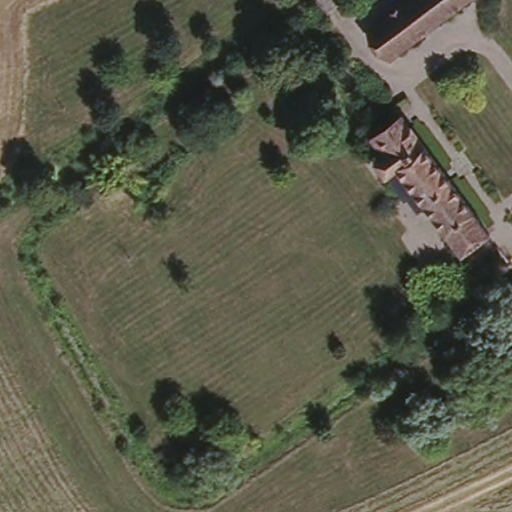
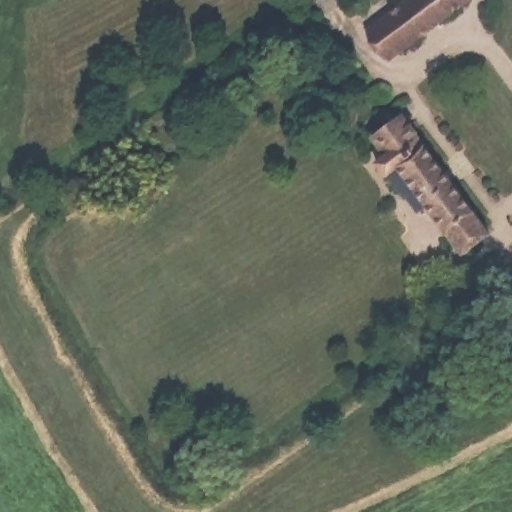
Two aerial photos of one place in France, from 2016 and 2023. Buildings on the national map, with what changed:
unchanged [(382,55),(367,29),(412,0),(464,0),(382,55)]
unchanged [(419,195),(412,199),(383,156),(373,162),(367,151),(376,146),(366,132),(398,109),(417,137),(421,134),(483,225),(452,245),(419,195)]

